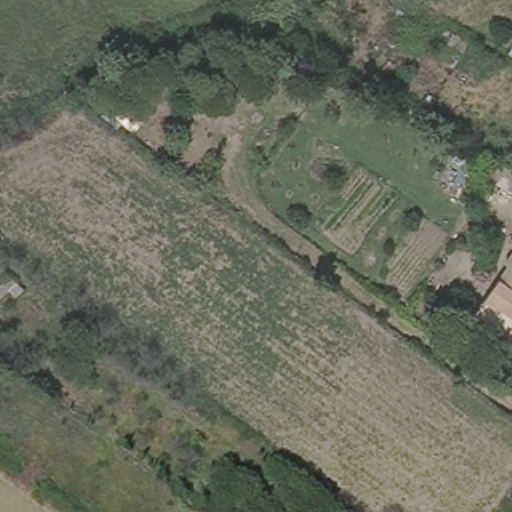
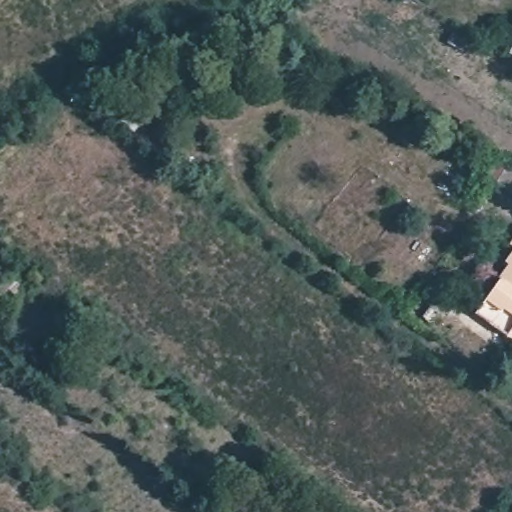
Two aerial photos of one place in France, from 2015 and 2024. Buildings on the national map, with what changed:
unchanged [(116,85),(151,110),(134,131),(101,109),(116,85)]
unchanged [(510,167),(512,168),(512,194),(497,186),(510,167)]
unchanged [(512,239),(512,241),(511,241),(512,239)]
unchanged [(477,312),(511,262),(507,259),(512,252),(512,334),(507,331),(477,312)]

